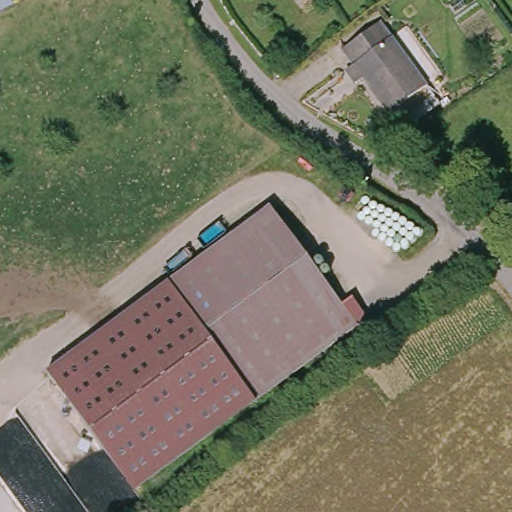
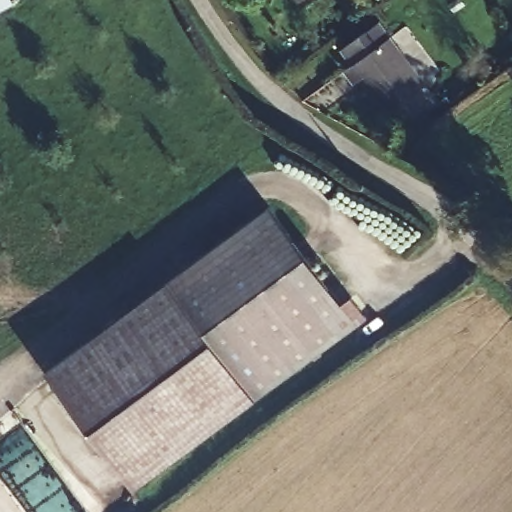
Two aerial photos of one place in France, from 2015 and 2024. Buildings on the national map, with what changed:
unchanged [(302,0),(300,2),(298,0),(302,0)]
unchanged [(341,64),(354,58),(348,47),(351,39),(386,20),(426,90),(386,114),(366,75),(351,83),(341,64)]
unchanged [(75,333),(278,204),(355,327),(118,473),(43,354),(75,333)]

